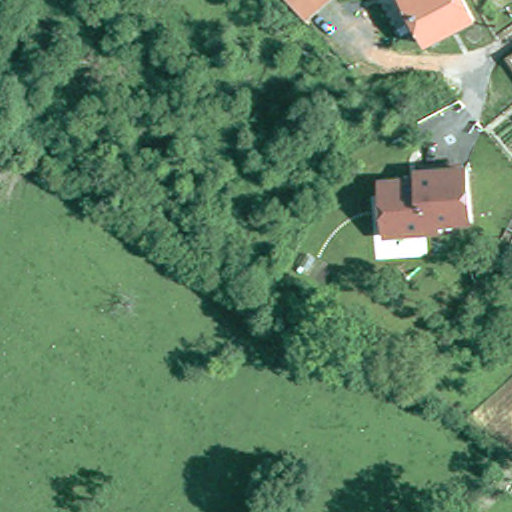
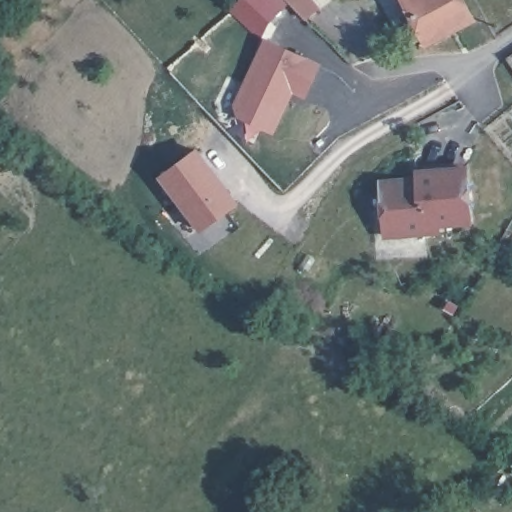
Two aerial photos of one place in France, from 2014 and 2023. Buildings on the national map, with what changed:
new [(317,2),(302,15),(289,0),(316,0),(317,2)]
unchanged [(395,0),(455,0),(465,21),(415,44),(415,41),(397,4),(395,0)]
new [(319,64),(305,94),(290,86),(285,95),(287,100),(272,130),(240,113),(236,104),(267,39),(319,64)]
new [(158,177),(199,148),(240,205),(200,233),(158,177)]
unchanged [(467,170),(471,224),(440,226),(440,233),(386,237),(382,184),(405,181),(417,181),(417,174),(467,170)]

